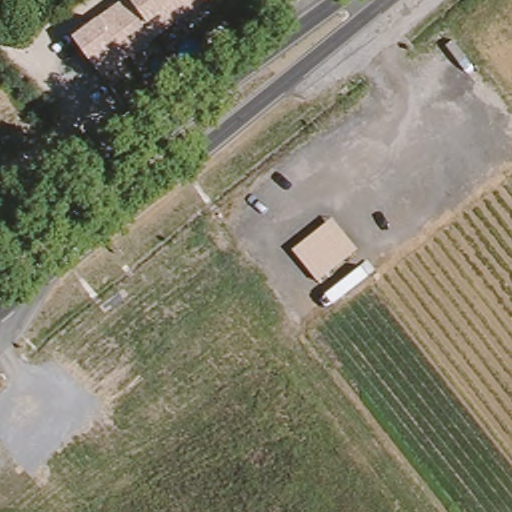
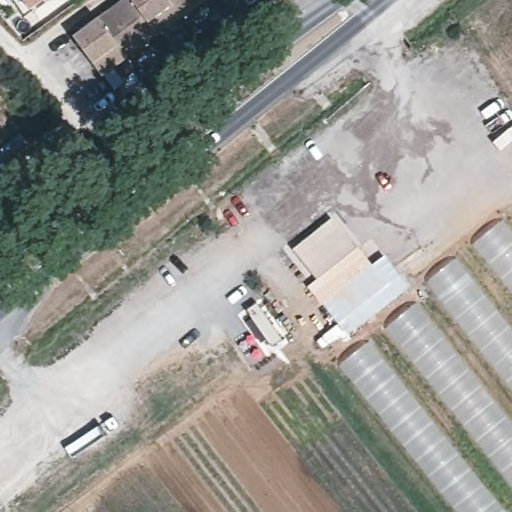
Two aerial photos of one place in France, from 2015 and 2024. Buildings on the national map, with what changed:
new [(30,11),(22,0),(46,0),(30,11)]
unchanged [(73,36),(98,17),(123,0),(210,0),(103,77),(92,63),(73,36)]
unchanged [(293,250),(334,218),(358,248),(318,281),(293,250)]
new [(471,243),(503,219),(512,231),(512,293),(471,243)]
new [(425,281),(457,258),(512,328),(512,387),(425,281)]
new [(373,266),(388,285),(348,315),(333,297),(373,266)]
new [(378,323),(408,299),(512,429),(512,487),(378,323)]
new [(457,512),(332,360),(361,335),(505,512),(457,512)]

